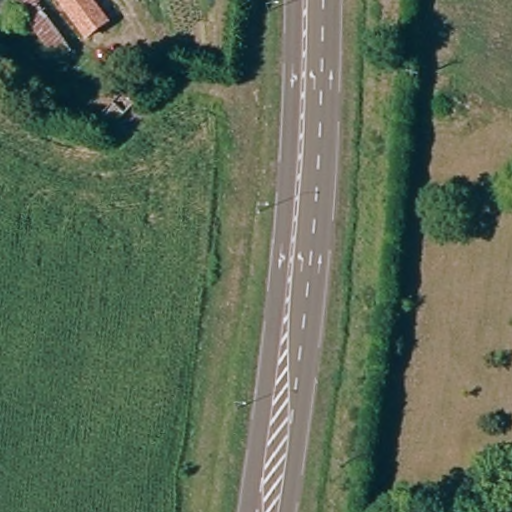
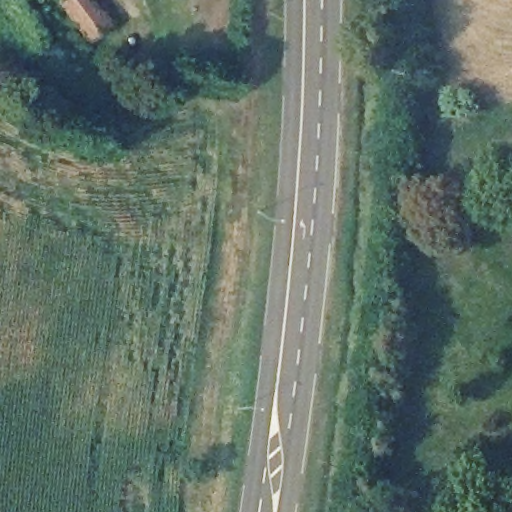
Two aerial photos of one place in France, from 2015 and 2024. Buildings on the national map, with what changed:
unchanged [(111,0),(125,18),(91,44),(64,8),(58,0),(111,0)]
unchanged [(91,44),(71,58),(43,23),(64,8),(91,44)]

